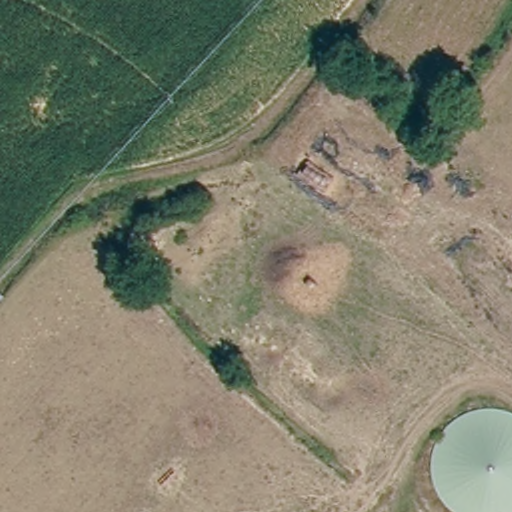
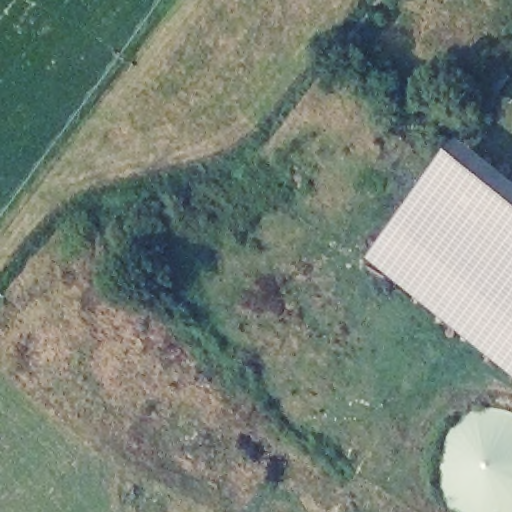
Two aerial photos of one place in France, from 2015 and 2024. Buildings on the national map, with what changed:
new [(463,143),(512,182),(512,377),(368,260),(463,143)]

